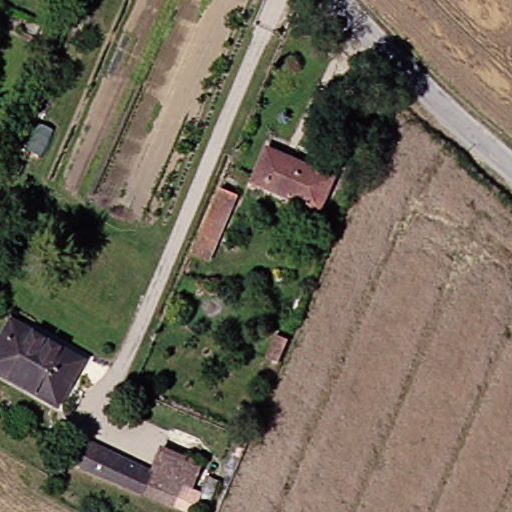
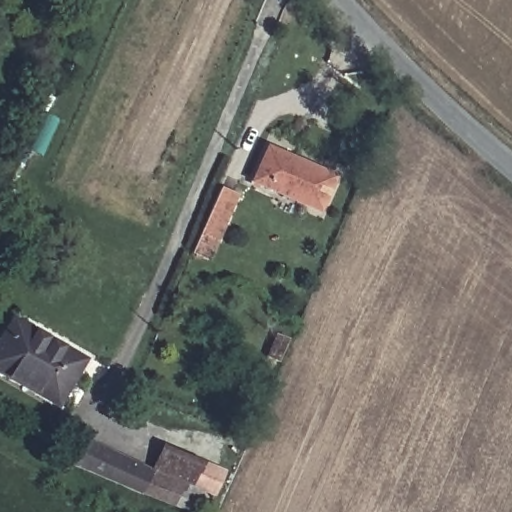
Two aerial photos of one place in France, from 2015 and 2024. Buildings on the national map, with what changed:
unchanged [(310,215),(245,187),(260,155),(325,182),(310,215)]
unchanged [(202,259),(186,252),(211,195),(227,202),(202,259)]
unchanged [(49,403),(0,375),(0,327),(4,321),(73,361),(49,403)]
unchanged [(281,362),(268,357),(272,346),(285,352),(281,362)]
unchanged [(194,475),(210,482),(201,502),(192,498),(187,509),(180,506),(177,512),(176,512),(132,497),(70,466),(82,443),(144,475),(158,447),(198,466),(194,475)]

